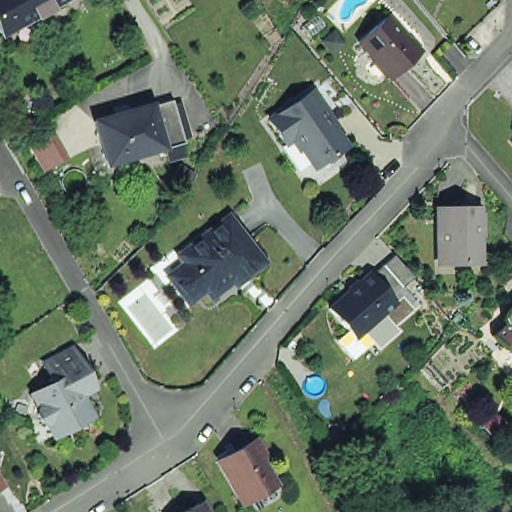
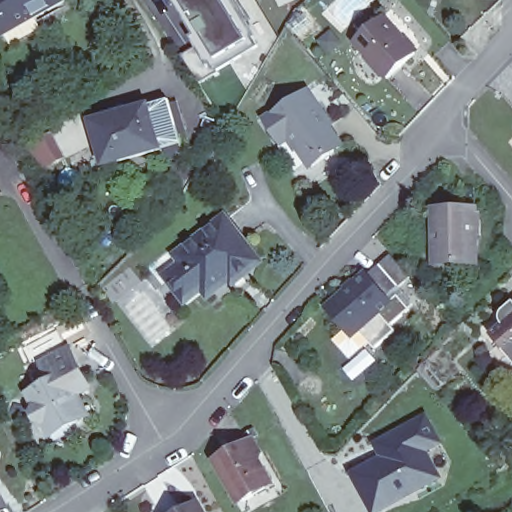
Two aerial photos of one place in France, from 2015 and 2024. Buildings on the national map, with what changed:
unchanged [(53,14),(3,43),(0,38),(0,0),(70,0),(72,2),(53,14)]
new [(222,75),(183,0),(237,0),(265,49),(222,75)]
unchanged [(417,53),(388,79),(356,41),(385,16),(417,53)]
unchanged [(268,121),(308,94),(329,124),(326,125),(340,146),(312,165),(293,136),(282,143),(268,121)]
unchanged [(168,102),(189,97),(200,141),(180,147),(102,166),(91,121),(168,101),(168,102)]
unchanged [(447,196),(452,196),(485,200),(480,234),(476,255),(455,252),(456,248),(439,245),(447,196)]
unchanged [(225,219),(259,263),(233,283),(230,279),(221,285),(194,244),(225,219)]
unchanged [(221,285),(208,295),(202,287),(186,301),(167,277),(184,264),(178,256),(194,244),(221,285)]
unchanged [(368,344),(350,360),(333,340),(345,331),(325,308),(367,273),(369,275),(391,256),(411,279),(388,299),(392,304),(358,331),(368,344)]
unchanged [(495,341),(505,332),(505,323),(505,317),(512,312),(512,362),(495,341)]
unchanged [(45,368),(73,353),(90,384),(76,391),(61,399),(55,386),(45,368)]
unchanged [(74,426),(52,437),(48,428),(41,425),(37,420),(40,412),(32,398),(55,386),(61,399),(76,391),(92,420),(75,430),(74,426)]
new [(376,446),(383,443),(411,426),(426,418),(441,444),(426,453),(441,479),(381,512),(373,512),(353,476),(384,460),(376,446)]
unchanged [(252,438),(260,452),(258,459),(270,480),(256,487),(253,495),(245,500),(237,498),(220,468),(215,460),(222,456),(252,438)]
unchanged [(0,489),(0,486),(1,488),(0,489)]
unchanged [(189,503),(194,512),(173,512),(189,503)]

